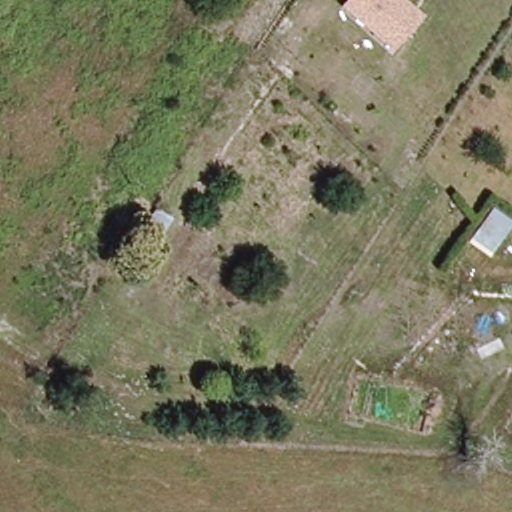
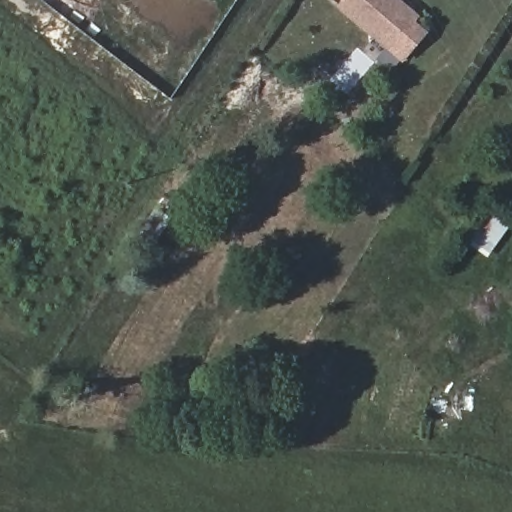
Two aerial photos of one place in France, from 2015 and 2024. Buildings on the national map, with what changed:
unchanged [(405,63),(390,51),(339,7),(345,0),(403,0),(421,15),(416,21),(430,34),(405,63)]
unchanged [(512,224),(487,258),(467,244),(492,205),(512,223),(512,224)]

